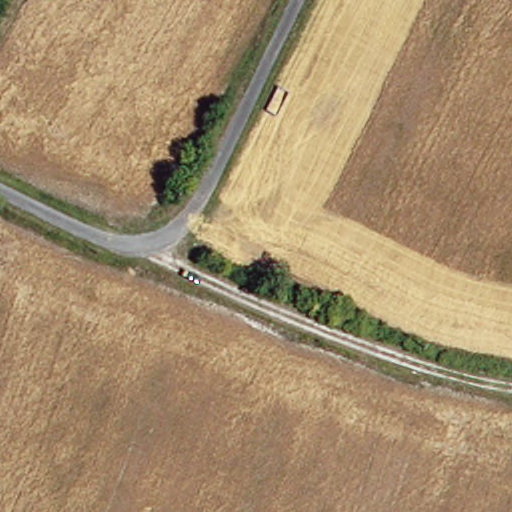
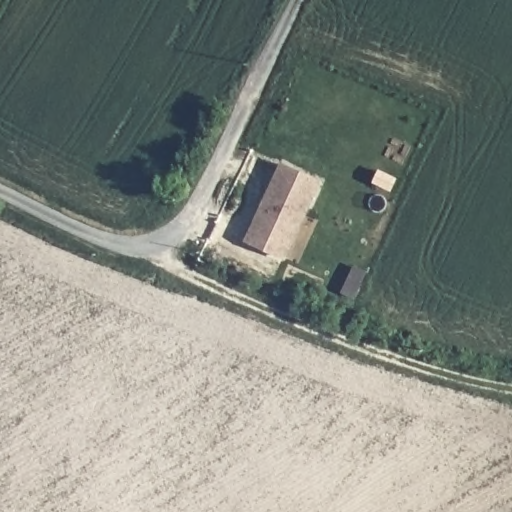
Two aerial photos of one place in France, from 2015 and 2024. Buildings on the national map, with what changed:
new [(280,162),(323,182),(286,261),(244,241),(280,162)]

